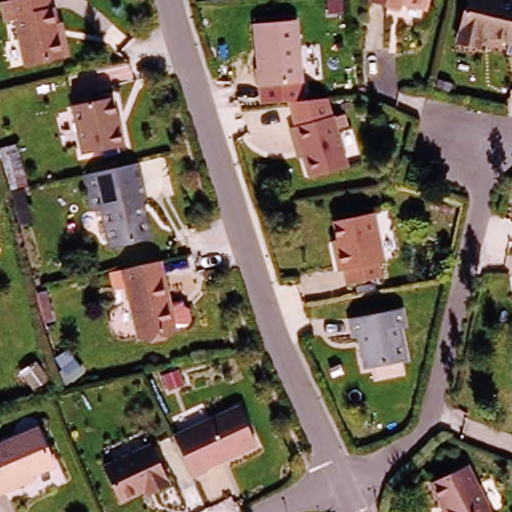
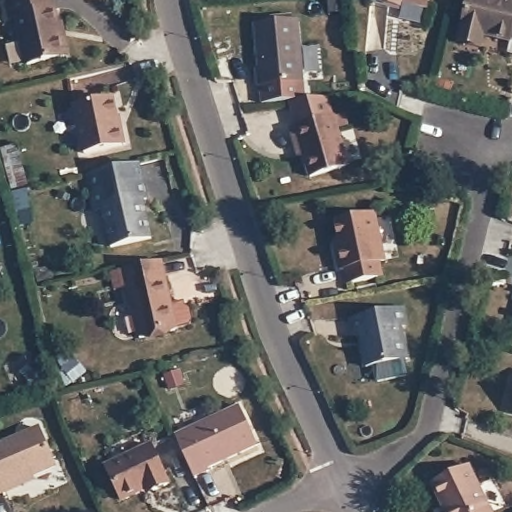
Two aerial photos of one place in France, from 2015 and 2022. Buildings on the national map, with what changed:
unchanged [(50,2),(52,1),(59,50),(20,55),(13,9),(4,11),(2,0),(49,0),(50,2)]
unchanged [(389,2),(378,0),(400,0),(399,5),(389,2)]
unchanged [(427,6),(402,0),(428,0),(427,6)]
unchanged [(512,1),(512,39),(511,39),(511,41),(484,35),(482,41),(481,47),(459,42),(460,36),(468,0),(508,0),(512,1)]
unchanged [(302,82),(256,85),(255,70),(258,70),(255,25),(298,21),(302,82)]
unchanged [(82,149),(70,102),(108,92),(113,110),(115,110),(118,121),(123,138),(82,149)]
unchanged [(345,156),(309,172),(295,141),(291,143),(284,128),(324,110),(345,156)]
unchanged [(38,220),(21,222),(0,146),(18,139),(38,220)]
unchanged [(137,179),(142,195),(137,197),(147,235),(108,245),(98,207),(93,209),(88,191),(137,179)]
unchanged [(379,257),(374,258),(377,272),(343,280),(340,265),(335,266),(330,243),(335,242),(330,217),(369,209),(379,257)]
unchanged [(158,263),(176,330),(140,340),(122,273),(158,263)]
unchanged [(400,305),(404,321),(400,322),(407,355),(365,363),(358,331),(355,332),(351,315),(400,305)]
unchanged [(46,375),(31,386),(17,368),(33,357),(46,375)]
unchanged [(233,407),(251,446),(202,469),(203,471),(189,478),(169,436),(233,407)]
unchanged [(21,482),(0,491),(0,443),(36,427),(52,465),(28,475),(30,478),(21,482)]
unchanged [(139,490),(115,500),(100,465),(146,445),(163,485),(147,492),(141,495),(139,490)]
unchanged [(443,512),(426,479),(462,461),(488,512),(443,512)]

